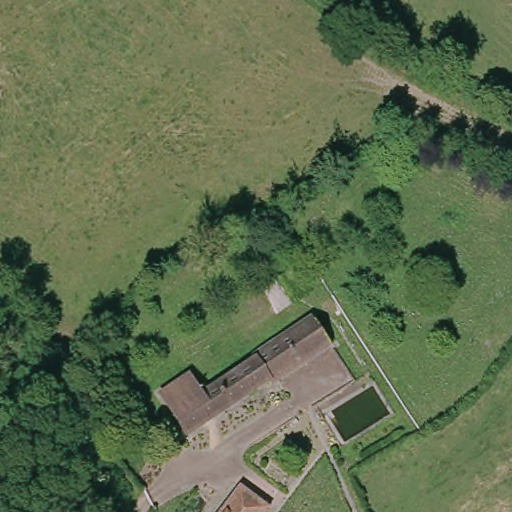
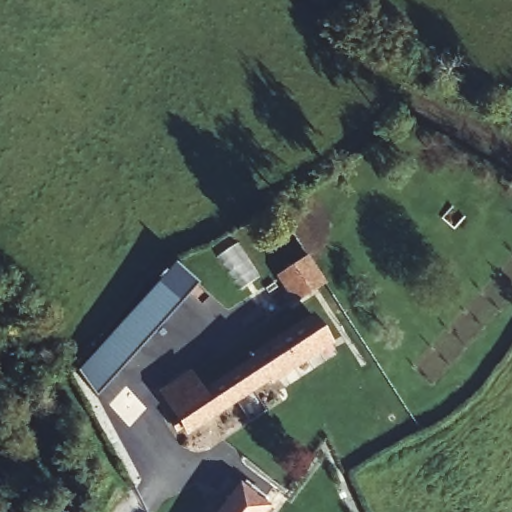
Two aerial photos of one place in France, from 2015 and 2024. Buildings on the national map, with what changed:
new [(326,284),(293,305),(275,276),(308,255),(326,284)]
new [(181,303),(98,396),(79,369),(158,282),(181,303)]
unchanged [(173,415),(168,407),(173,404),(245,357),(246,356),(248,357),(308,322),(311,320),(326,344),(266,381),(256,386),(254,384),(183,432),(179,424),(170,429),(166,422),(164,419),(173,415)]
unchanged [(263,507),(259,512),(226,512),(243,491),(263,507)]
demolished [(196,507),(191,512),(178,512),(191,500),(196,507)]

